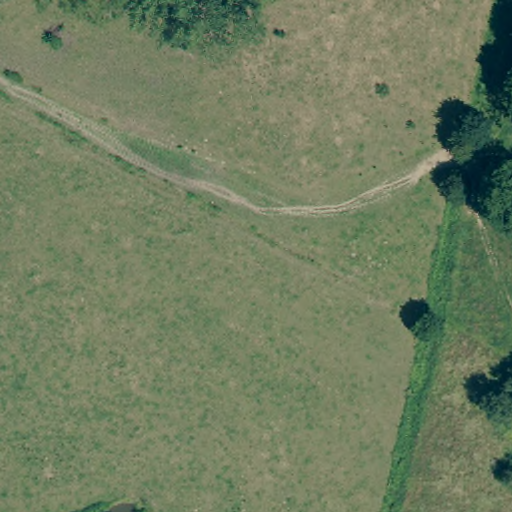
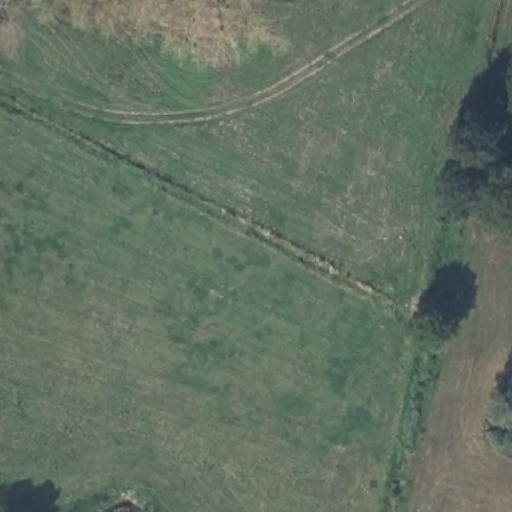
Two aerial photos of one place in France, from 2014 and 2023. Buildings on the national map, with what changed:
[]

